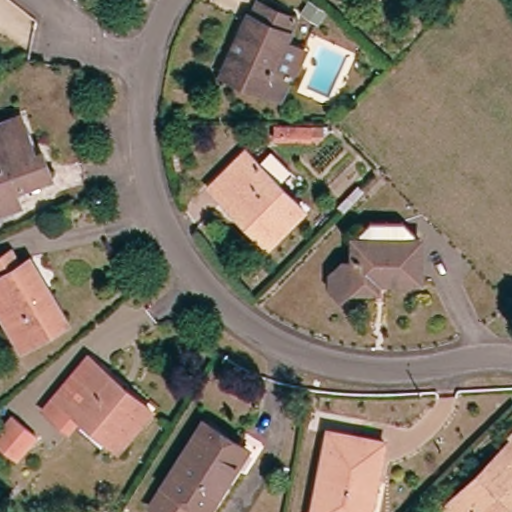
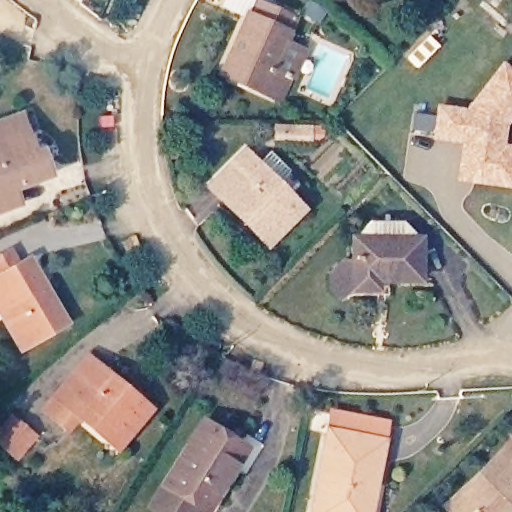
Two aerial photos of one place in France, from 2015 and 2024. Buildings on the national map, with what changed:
unchanged [(328,11),(321,22),(306,12),(313,1),(328,11)]
unchanged [(291,76),(281,99),(226,75),(252,16),(258,19),(265,4),(300,19),(290,41),(303,46),(291,76)]
new [(463,142),(433,138),(437,108),(467,112),(467,110),(501,65),(512,73),(512,111),(502,124),(500,146),(512,148),(512,185),(458,178),(459,171),(463,142)]
unchanged [(22,200),(0,210),(0,124),(24,115),(46,176),(17,188),(22,200)]
unchanged [(307,142),(275,141),(274,125),(307,126),(307,142)]
unchanged [(302,207),(267,244),(208,186),(244,151),(257,163),(268,151),(288,170),(277,182),(302,207)]
unchanged [(426,280),(385,279),(383,291),(359,288),(346,299),(336,285),(335,271),(346,260),(360,261),(358,240),(363,240),(363,235),(375,222),(409,222),(421,234),(421,239),(426,239),(426,280)]
unchanged [(0,309),(0,272),(26,257),(64,323),(23,348),(2,312),(0,309)]
unchanged [(85,416),(74,430),(50,410),(77,377),(95,357),(105,366),(157,410),(130,442),(124,448),(85,416)]
unchanged [(32,437),(12,460),(0,450),(0,427),(9,417),(32,437)]
unchanged [(236,456),(242,462),(211,512),(208,512),(202,508),(200,512),(166,512),(154,504),(206,422),(243,443),(236,456)]
unchanged [(315,512),(332,431),(387,443),(377,484),(372,483),(366,512),(315,512)]
unchanged [(511,512),(447,512),(445,509),(512,447),(512,511),(511,512)]

